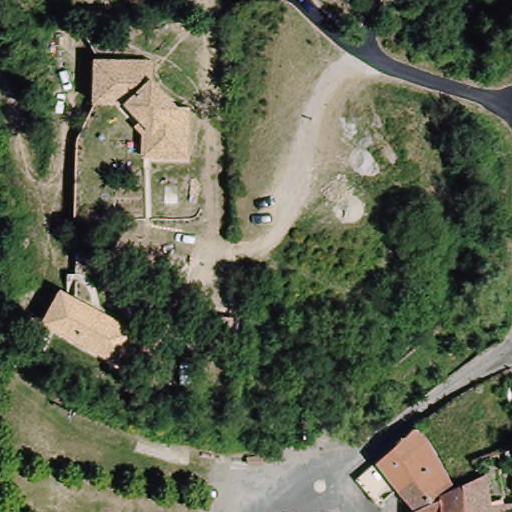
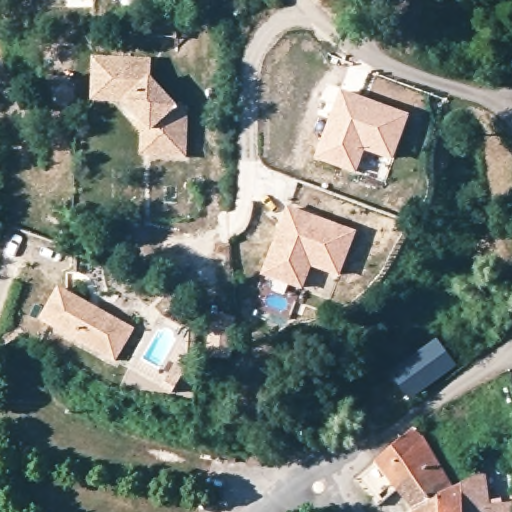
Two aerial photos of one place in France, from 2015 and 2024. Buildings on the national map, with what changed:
unchanged [(148,126),(131,105),(106,105),(104,65),(160,65),(158,85),(182,112),(191,113),(195,161),(149,159),(148,126)]
new [(411,115),(395,160),(367,150),(359,172),(317,157),(341,90),(411,115)]
new [(359,231),(342,278),(313,267),(306,288),(263,273),(288,206),(359,231)]
unchanged [(58,285),(124,319),(142,331),(117,361),(42,320),(58,285)]
unchanged [(316,442),(307,444),(298,410),(311,407),(320,439),(316,442)]
unchanged [(425,510),(412,489),(392,502),(390,505),(368,475),(379,467),(402,448),(432,418),(467,491),(470,488),(475,487),(492,478),(502,475),(502,507),(512,505),(512,512),(426,512),(425,510)]

